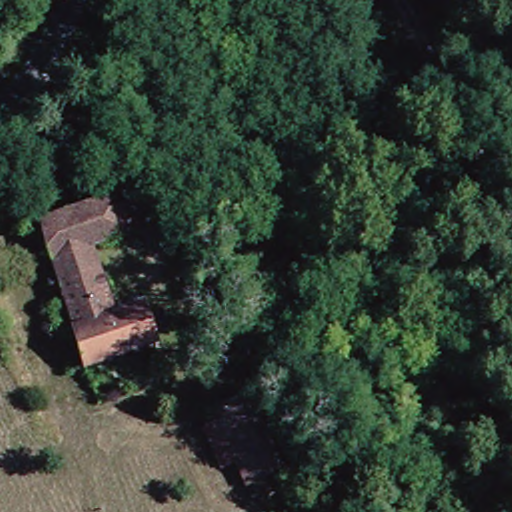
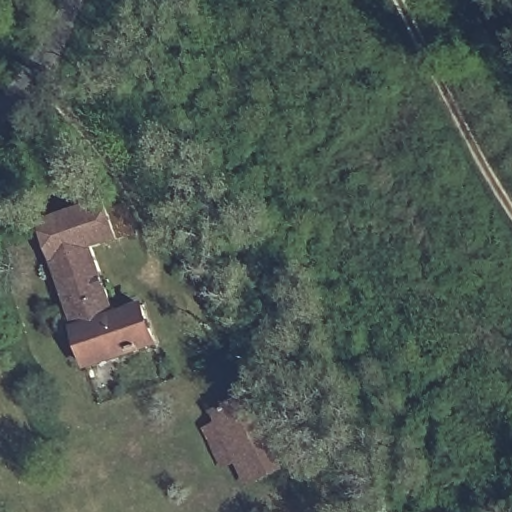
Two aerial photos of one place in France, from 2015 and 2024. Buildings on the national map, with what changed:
unchanged [(31,223),(98,199),(108,226),(136,216),(142,232),(88,252),(110,312),(136,303),(152,345),(85,371),(31,223)]
unchanged [(245,396),(277,467),(260,476),(224,406),(245,396)]
unchanged [(244,483),(211,412),(224,406),(260,476),(244,483)]

